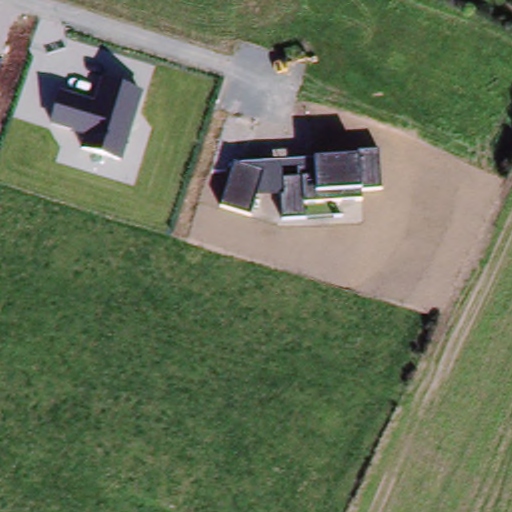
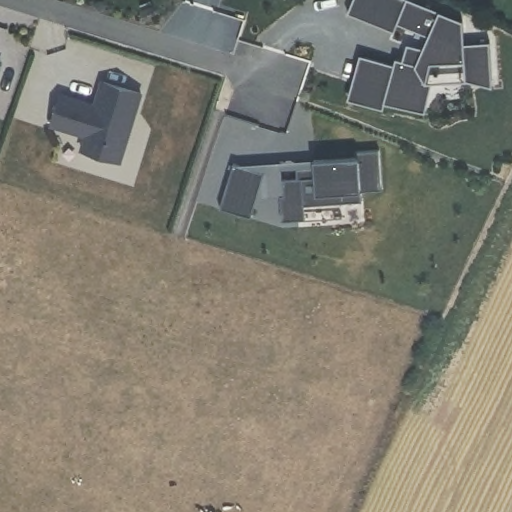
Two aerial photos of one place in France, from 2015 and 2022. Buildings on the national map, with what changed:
new [(356,0),(401,0),(465,26),(466,48),(491,47),(493,84),(467,85),(465,67),(432,67),(422,115),(386,107),(385,113),(354,105),(367,60),(395,68),(397,62),(409,65),(413,49),(430,53),(437,37),(401,22),(396,36),(350,17),(356,0)]
unchanged [(0,64),(0,59),(2,59),(0,64)]
unchanged [(122,163),(80,150),(85,135),(50,126),(62,92),(94,101),(100,77),(143,92),(122,163)]
unchanged [(382,190),(362,192),(362,200),(303,205),(305,219),(282,220),(281,196),(257,198),(251,216),(220,207),(233,165),(357,155),(357,153),(378,150),(382,190)]

